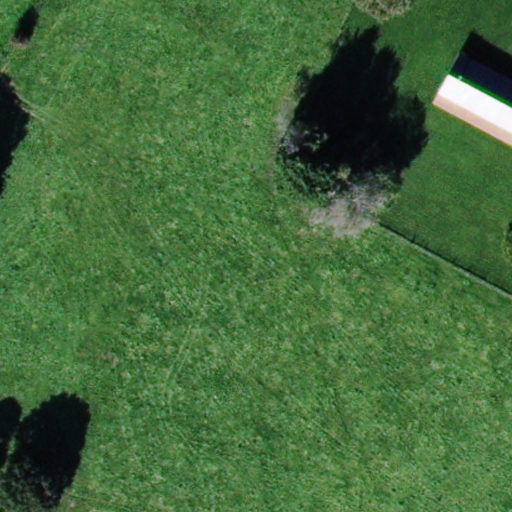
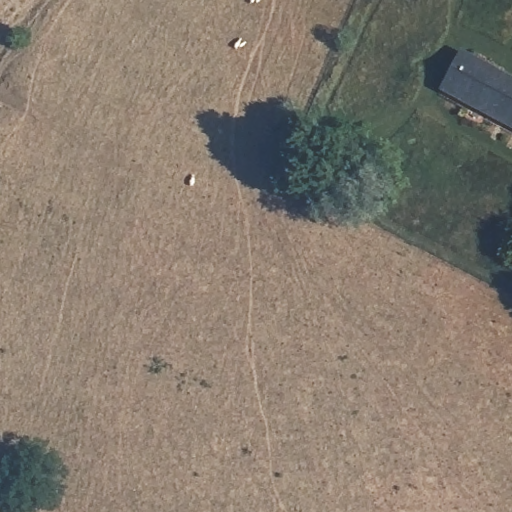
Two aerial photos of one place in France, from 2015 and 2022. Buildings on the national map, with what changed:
unchanged [(459,58),(512,81),(512,122),(445,92),(459,58)]

